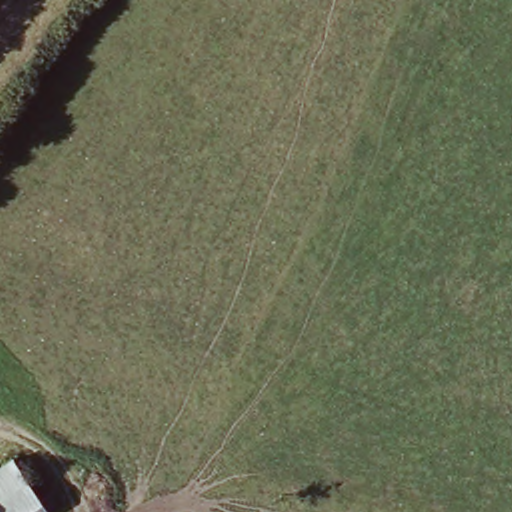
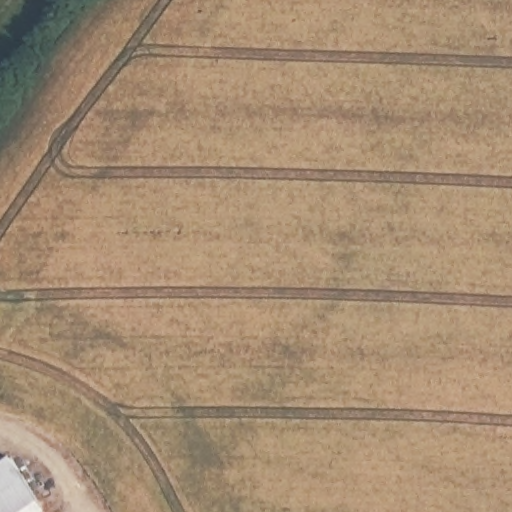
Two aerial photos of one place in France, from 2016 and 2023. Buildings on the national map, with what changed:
unchanged [(52,508),(47,512),(0,512),(0,460),(12,451),(52,508)]

